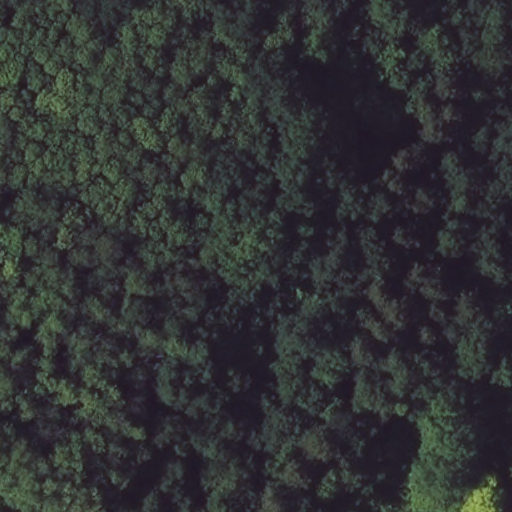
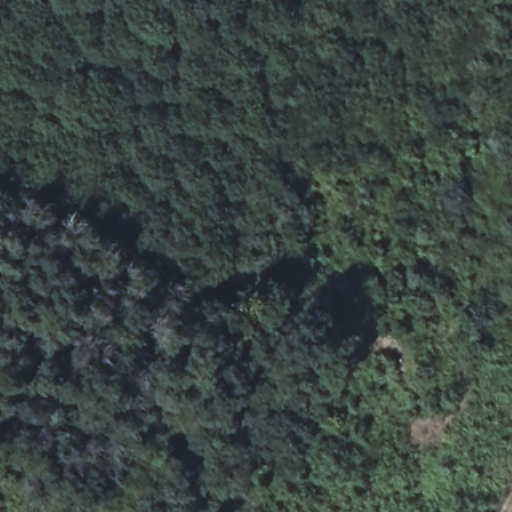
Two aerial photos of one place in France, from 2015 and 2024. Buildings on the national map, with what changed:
[]

